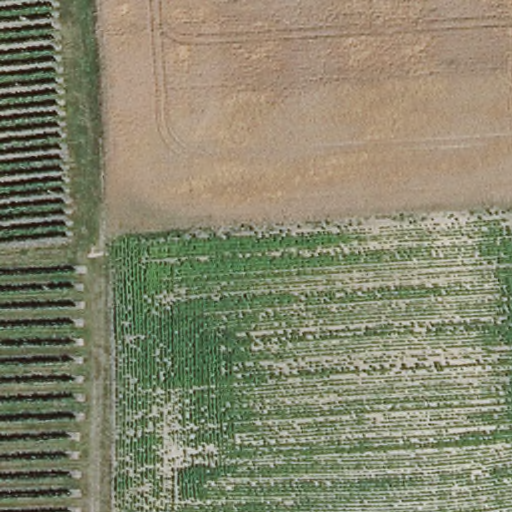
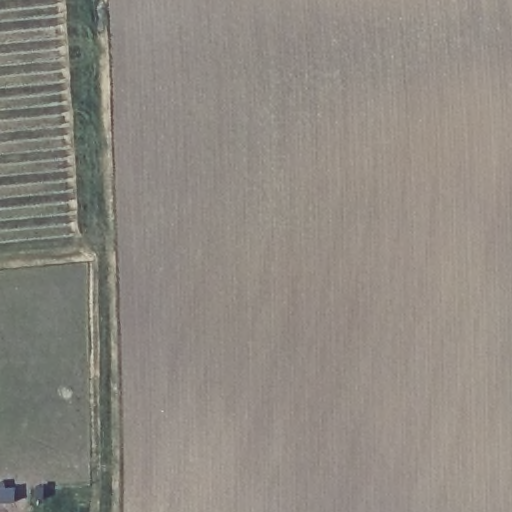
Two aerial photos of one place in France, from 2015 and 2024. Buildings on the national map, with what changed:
[]

